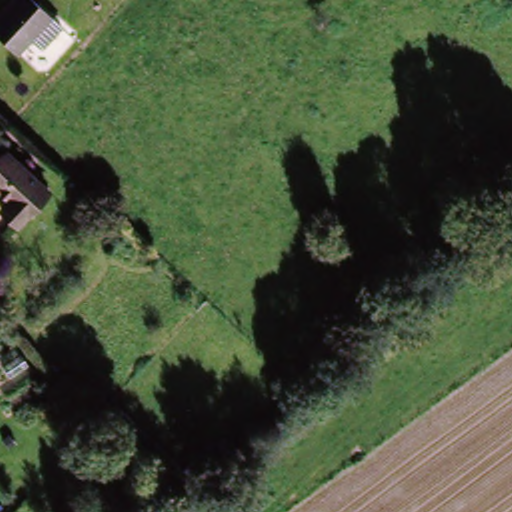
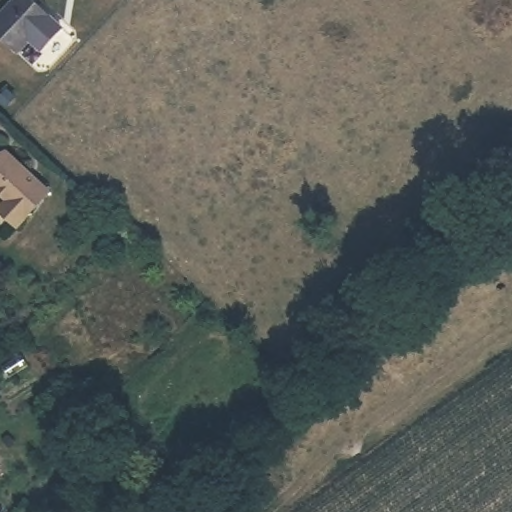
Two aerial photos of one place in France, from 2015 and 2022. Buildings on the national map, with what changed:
unchanged [(41,49),(28,36),(3,62),(0,59),(0,8),(8,0),(27,0),(45,18),(58,30),(41,49)]
unchanged [(15,152),(56,200),(20,231),(4,212),(15,204),(0,186),(0,165),(15,152)]

